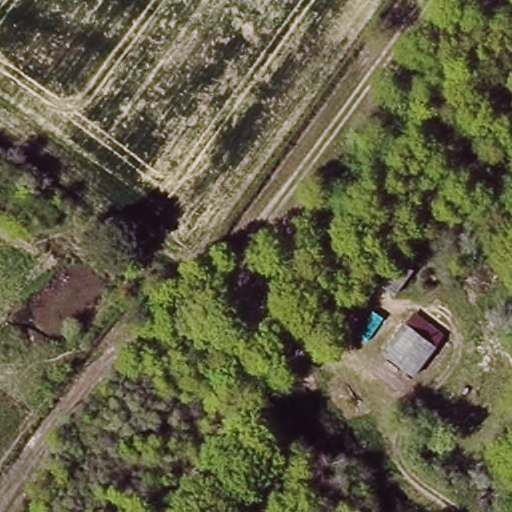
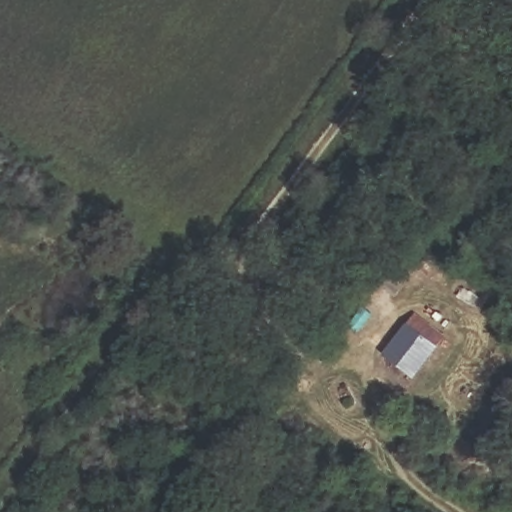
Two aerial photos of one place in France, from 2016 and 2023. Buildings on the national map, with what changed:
unchanged [(394,350),(420,311),(451,335),(423,373),(394,350)]

